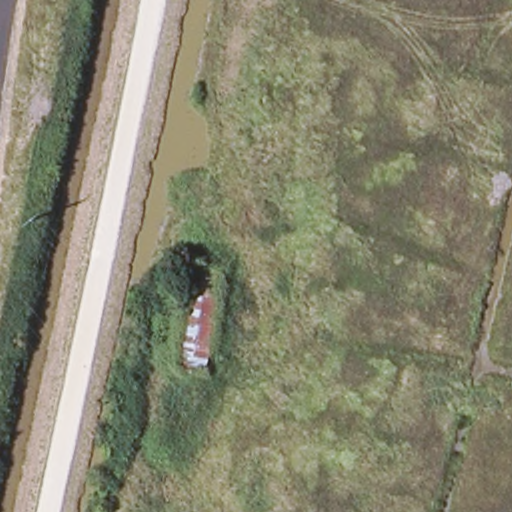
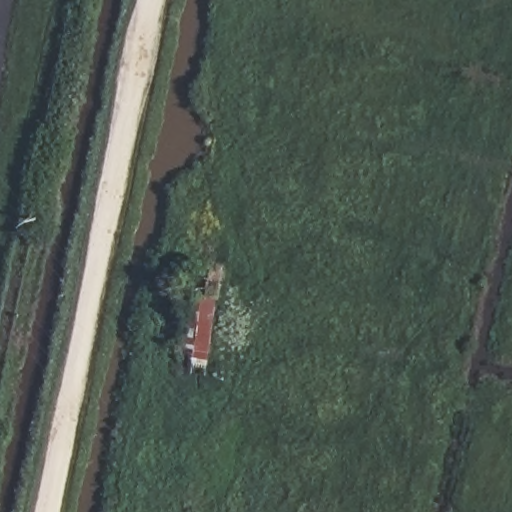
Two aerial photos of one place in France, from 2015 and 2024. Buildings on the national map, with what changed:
unchanged [(196,369),(196,372),(179,369),(188,294),(178,292),(181,262),(224,268),(209,370),(196,369)]

